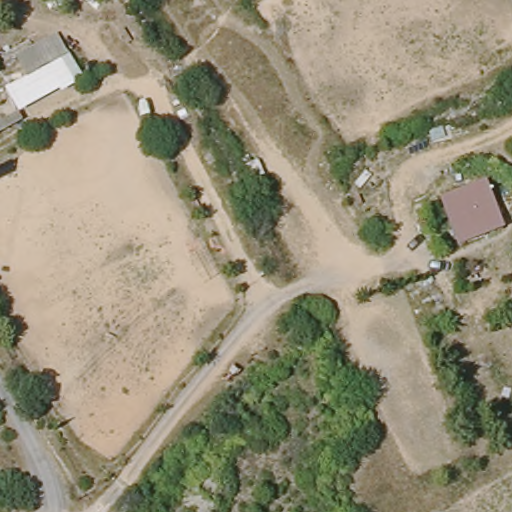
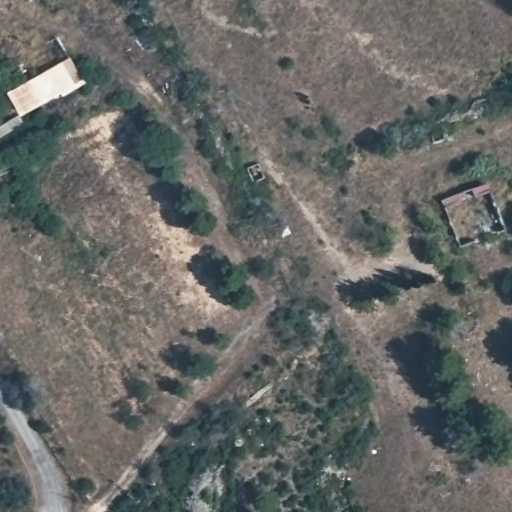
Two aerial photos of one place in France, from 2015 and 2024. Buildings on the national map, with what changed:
unchanged [(17,61),(58,38),(70,59),(29,82),(17,61)]
unchanged [(29,82),(70,59),(83,82),(61,94),(59,90),(16,113),(6,95),(29,82)]
unchanged [(504,227),(458,244),(442,200),(457,195),(454,187),(469,182),(472,189),(487,182),(504,227)]

